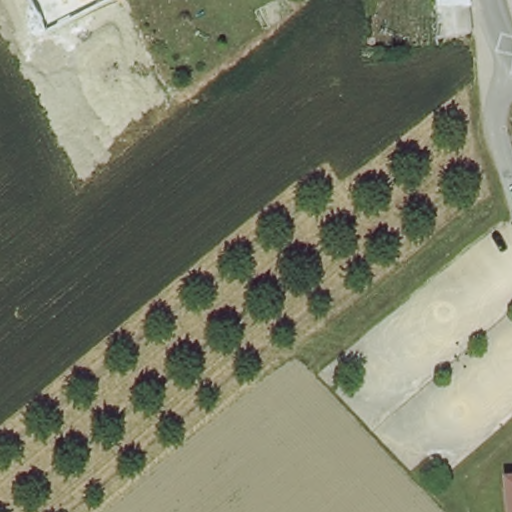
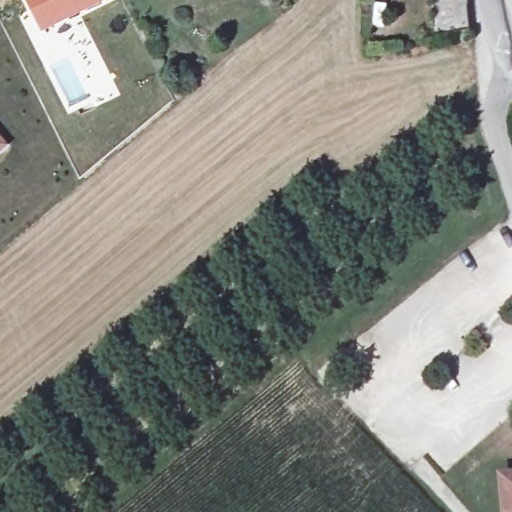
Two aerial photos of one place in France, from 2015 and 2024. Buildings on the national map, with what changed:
new [(43,32),(26,0),(104,0),(43,32)]
unchanged [(436,15),(436,11),(436,0),(470,0),(470,8),(471,12),(473,32),(435,39),(436,15)]
new [(0,135),(9,145),(0,155),(0,135)]
new [(502,512),(499,473),(512,472),(512,512),(502,512)]
demolished [(507,512),(505,480),(512,472),(512,512),(507,512)]

